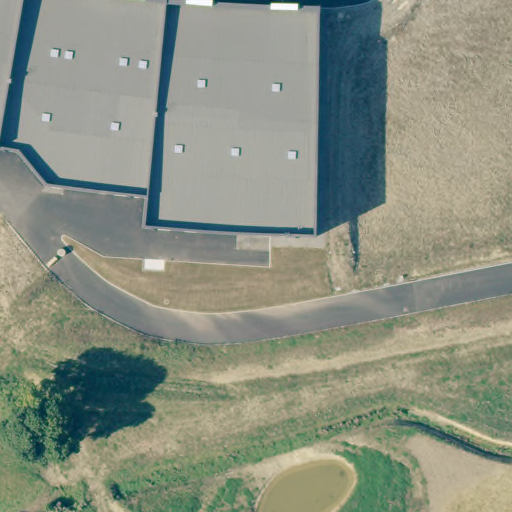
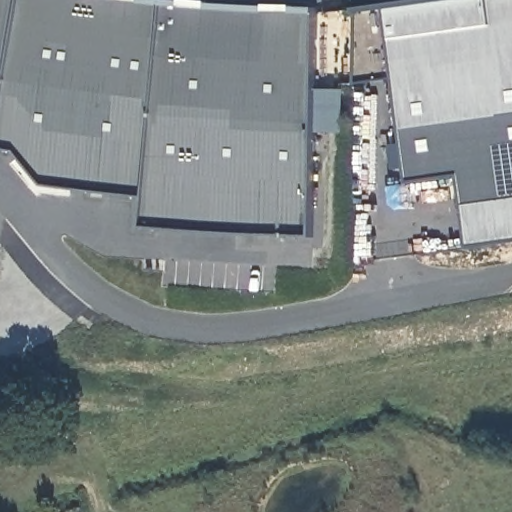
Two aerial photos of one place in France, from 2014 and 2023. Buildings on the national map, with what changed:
unchanged [(315,11),(313,236),(205,232),(143,227),(145,198),(45,184),(18,152),(0,149),(0,0),(150,0),(165,2),(315,11)]
new [(512,0),(512,242),(470,248),(459,176),(409,182),(395,78),(355,85),(356,10),(422,0),(512,0)]

